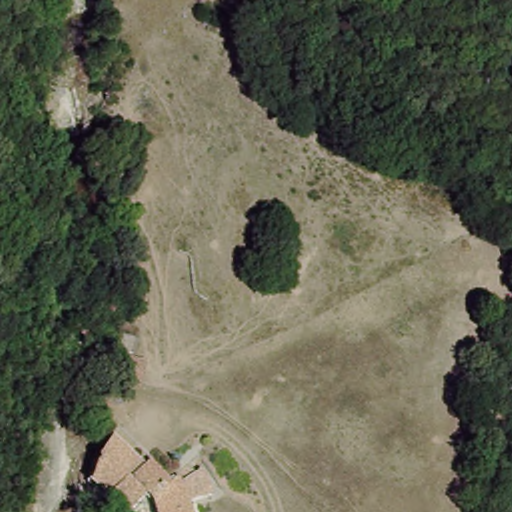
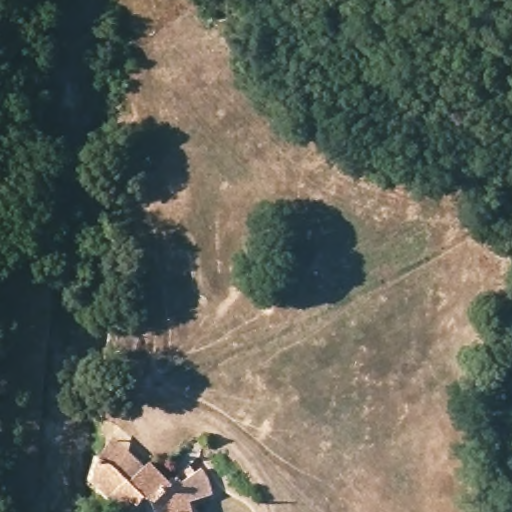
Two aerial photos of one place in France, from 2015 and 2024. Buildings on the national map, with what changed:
unchanged [(115,452),(140,475),(145,470),(168,488),(176,481),(179,485),(181,488),(200,475),(212,502),(191,510),(192,512),(147,512),(142,500),(130,512),(110,512),(85,487),(93,477),(115,452)]

